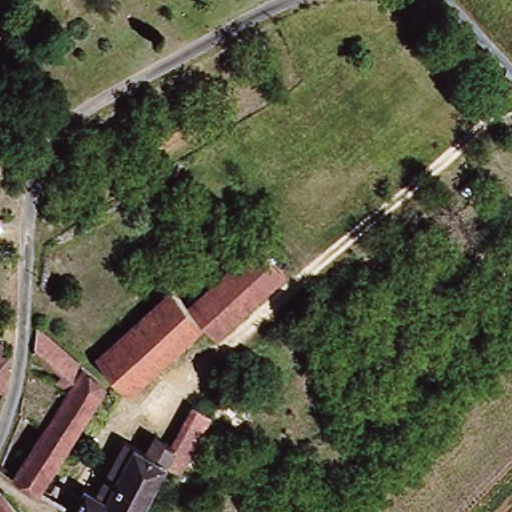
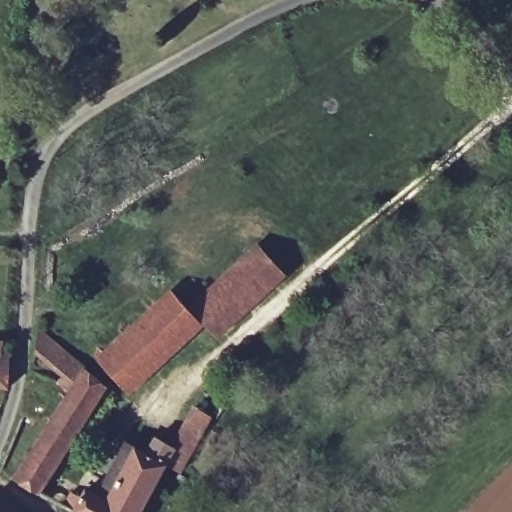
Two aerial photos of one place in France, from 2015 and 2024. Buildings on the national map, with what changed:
unchanged [(178,284),(196,303),(260,246),(290,279),(231,335),(215,321),(162,368),(132,395),(109,368),(99,357),(178,284)]
unchanged [(46,492),(20,478),(75,392),(60,380),(68,370),(41,346),(43,327),(113,388),(46,492)]
unchanged [(7,342),(7,354),(15,355),(13,388),(0,387),(0,343),(7,342)]
unchanged [(157,432),(181,445),(205,400),(221,409),(188,472),(173,463),(147,512),(80,512),(91,492),(103,498),(133,447),(145,453),(157,432)]
unchanged [(20,512),(0,512),(0,491),(20,512)]

